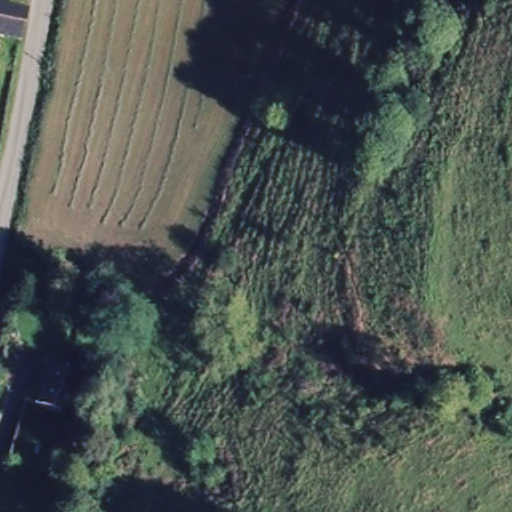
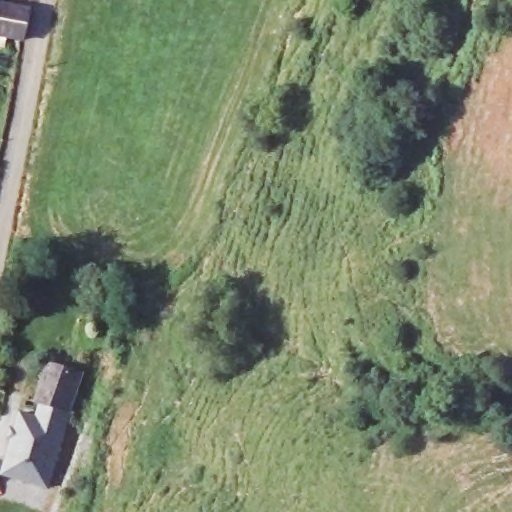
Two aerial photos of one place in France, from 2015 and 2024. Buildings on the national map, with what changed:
unchanged [(0,5),(23,8),(18,42),(0,40),(0,5)]
demolished [(43,368),(56,372),(61,361),(79,365),(63,426),(29,416),(43,368)]
new [(36,413),(39,405),(36,403),(48,363),(83,372),(70,413),(47,492),(1,480),(19,411),(36,413)]

